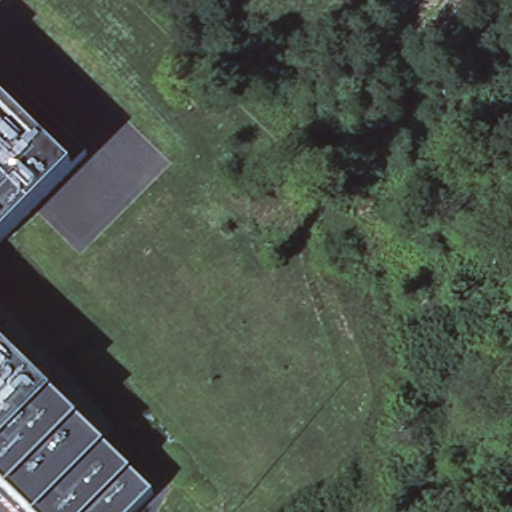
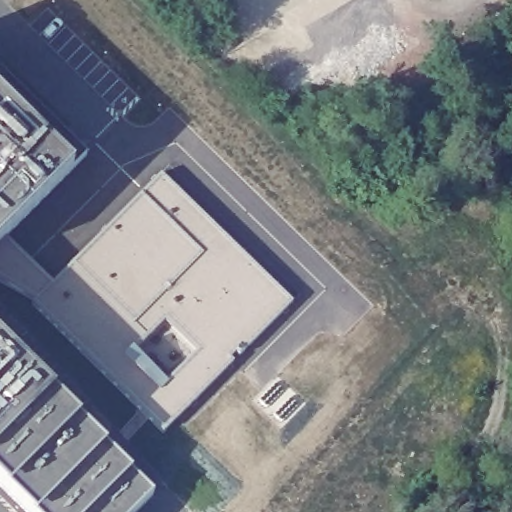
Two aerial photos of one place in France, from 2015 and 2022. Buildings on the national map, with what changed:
unchanged [(8,230),(0,238),(0,63),(87,150),(8,230)]
new [(162,173),(293,299),(164,431),(34,299),(0,279),(0,239),(7,232),(55,281),(162,173)]
unchanged [(132,512),(33,512),(0,480),(0,338),(154,490),(132,512)]

